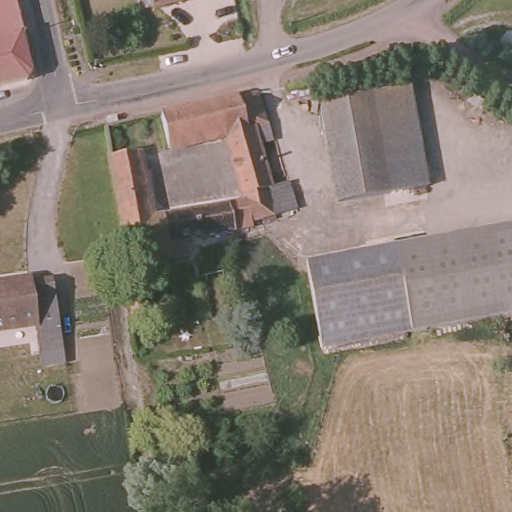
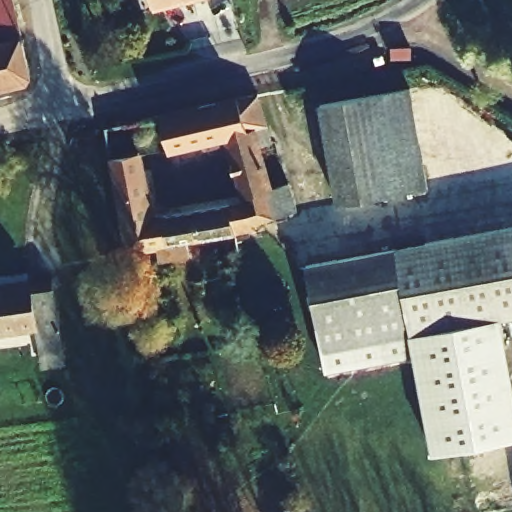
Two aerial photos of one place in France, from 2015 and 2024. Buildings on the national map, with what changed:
unchanged [(33,80),(0,86),(0,0),(17,0),(33,80)]
unchanged [(144,12),(141,0),(201,0),(144,12)]
unchanged [(261,118),(256,119),(266,185),(288,182),(293,214),(233,225),(223,227),(188,234),(191,251),(158,255),(156,240),(144,242),(136,244),(123,247),(108,157),(138,152),(151,221),(238,206),(227,134),(168,143),(163,108),(255,87),(261,118)]
unchanged [(367,96),(407,91),(419,186),(378,191),(367,96)]
unchanged [(333,196),(319,102),(367,96),(378,191),(333,196)]
unchanged [(512,229),(512,314),(314,342),(308,297),(303,258),(448,237),(512,229)]
unchanged [(27,279),(28,282),(48,278),(63,349),(41,353),(36,326),(0,333),(0,284),(27,279)]
new [(512,371),(512,439),(432,454),(414,356),(325,372),(314,342),(502,316),(512,371)]

